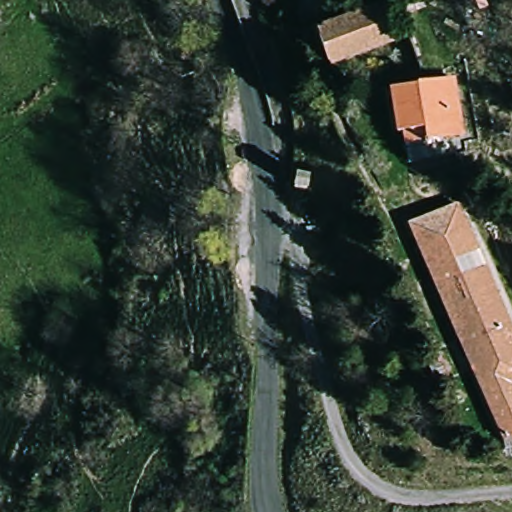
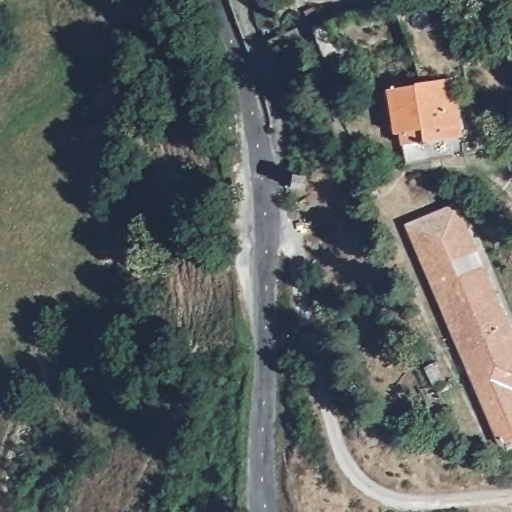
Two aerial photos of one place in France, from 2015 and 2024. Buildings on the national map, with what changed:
unchanged [(330,65),(317,25),(341,17),(344,22),(388,9),(399,42),(330,65)]
unchanged [(466,142),(428,147),(427,135),(399,138),(392,92),(457,82),(466,142)]
unchanged [(447,209),(512,352),(512,435),(497,440),(401,227),(447,209)]

